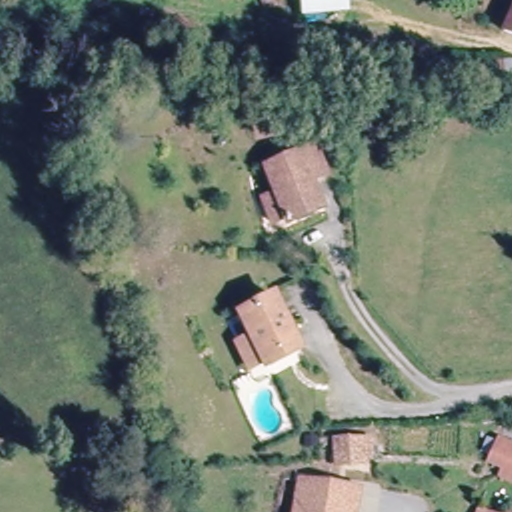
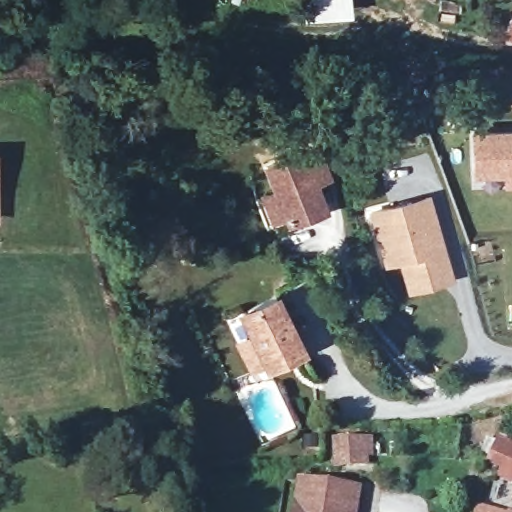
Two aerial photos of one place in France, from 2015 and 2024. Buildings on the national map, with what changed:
unchanged [(348,21),(300,20),(298,0),(348,0),(348,21)]
unchanged [(510,31),(512,26),(512,32),(510,31)]
unchanged [(480,88),(480,56),(512,59),(512,88),(480,88)]
new [(506,190),(505,173),(473,173),(471,128),(512,127),(512,190),(506,190)]
unchanged [(263,197),(277,192),(267,166),(316,147),(327,175),(313,180),(323,207),(288,221),(287,217),(273,222),(263,197)]
new [(453,280),(408,295),(401,264),(386,269),(367,211),(431,191),(453,280)]
unchanged [(234,344),(248,337),(237,313),(271,296),(296,348),(262,365),(260,360),(245,367),(234,344)]
unchanged [(512,446),(512,479),(499,474),(502,467),(491,462),(500,441),(512,446)]
unchanged [(333,444),(366,443),(367,464),(334,464),(333,444)]
unchanged [(331,486),(326,512),(296,512),(302,481),(331,486)]
unchanged [(356,512),(326,512),(331,486),(360,491),(356,512)]
unchanged [(489,512),(480,512),(481,509),(489,512)]

